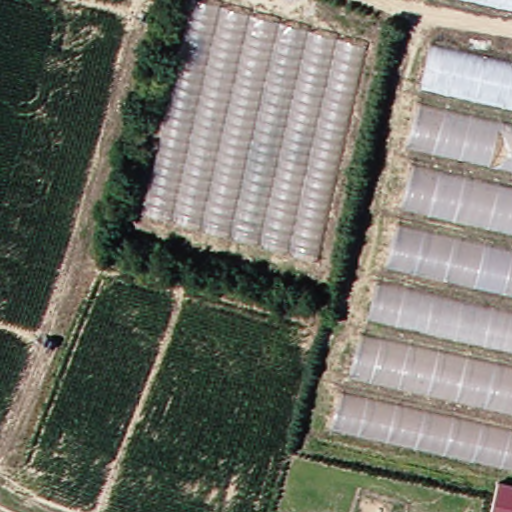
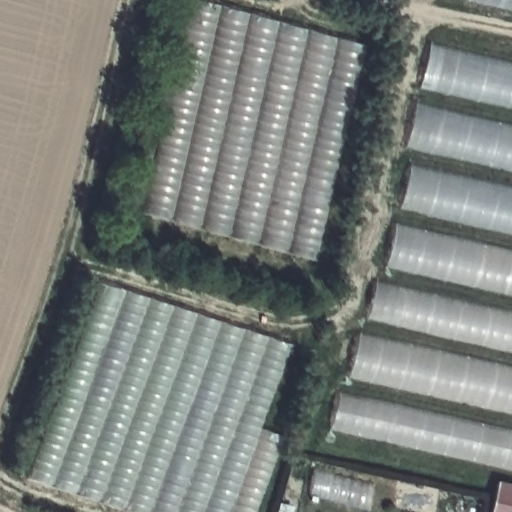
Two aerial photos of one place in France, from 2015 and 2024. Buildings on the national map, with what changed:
unchanged [(367,44),(318,261),(147,214),(197,0),(205,0),(367,44)]
unchanged [(469,0),(512,0),(512,9),(469,0)]
unchanged [(512,63),(512,351),(368,318),(430,44),(512,63)]
new [(263,430),(283,437),(257,512),(131,512),(32,480),(104,284),(292,346),(263,430)]
new [(512,351),(512,471),(329,430),(338,389),(348,392),(368,318),(512,351)]
new [(491,512),(498,481),(512,484),(512,512),(491,512)]

